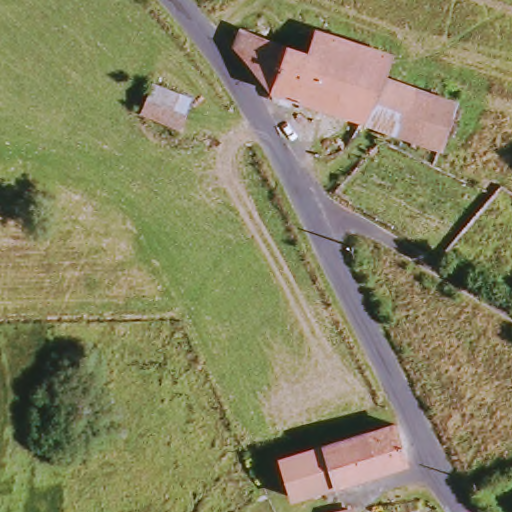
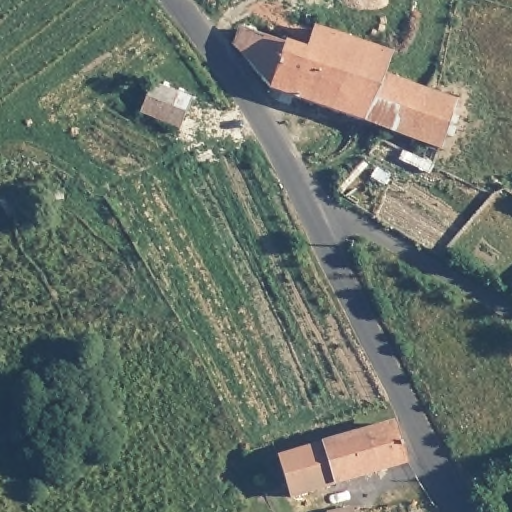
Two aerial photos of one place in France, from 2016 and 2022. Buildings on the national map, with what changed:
unchanged [(241,30),(277,42),(261,82),(233,49),(241,30)]
unchanged [(277,42),(308,54),(316,31),(390,57),(382,79),(457,105),(444,152),(268,92),(268,86),(261,82),(277,42)]
unchanged [(154,85),(192,106),(178,132),(138,111),(154,85)]
unchanged [(293,499),(280,461),(399,423),(409,462),(293,499)]

